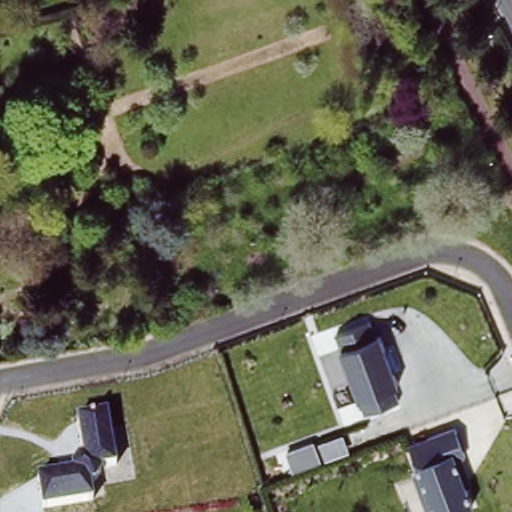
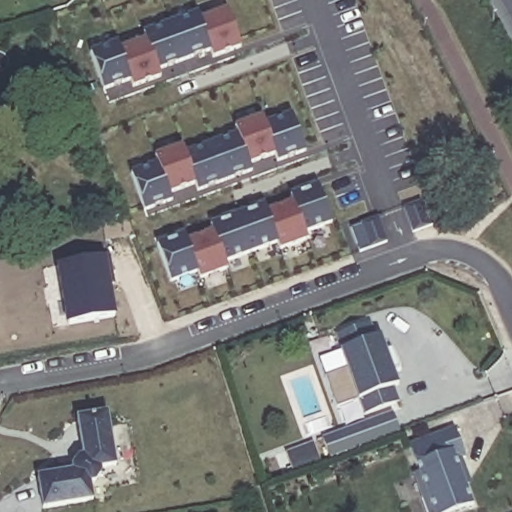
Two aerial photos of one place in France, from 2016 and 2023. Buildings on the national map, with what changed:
new [(214,60),(212,55),(160,74),(161,79),(133,86),(130,80),(104,90),(90,52),(119,42),(121,49),(145,38),(143,33),(198,12),(201,19),(226,9),(242,50),(214,60)]
new [(249,166),(252,174),(198,192),(195,185),(169,194),(170,201),(143,210),(130,172),(157,161),(154,156),(183,145),(185,151),(237,131),(235,126),(263,116),(265,122),(291,114),(306,154),(278,163),(275,157),(249,166)]
new [(305,231),(306,242),(280,249),(277,243),(225,262),(227,270),(200,280),(197,271),(170,282),(156,244),(185,233),(187,241),(212,231),(210,224),(265,204),(267,212),(292,201),(290,195),(318,185),(332,223),(305,231)]
new [(424,203),(431,224),(413,230),(406,210),(424,203)]
new [(66,324),(57,266),(107,258),(115,316),(66,324)]
unchanged [(372,317),(378,332),(383,330),(389,346),(386,347),(393,364),(395,363),(401,379),(397,381),(402,396),(368,409),(362,394),(361,394),(343,345),(344,345),(338,330),(372,317)]
demolished [(10,345),(0,347),(0,328),(3,327),(10,345)]
new [(361,394),(338,403),(320,354),(343,345),(361,394)]
unchanged [(106,407),(116,462),(100,465),(102,470),(95,479),(91,480),(93,497),(42,507),(36,474),(72,467),(71,463),(78,453),(82,452),(75,413),(106,407)]
new [(328,458),(322,436),(392,413),(400,432),(328,458)]
unchanged [(406,445),(454,426),(465,457),(462,458),(472,483),(465,485),(473,506),(454,512),(431,512),(415,467),(406,445)]

